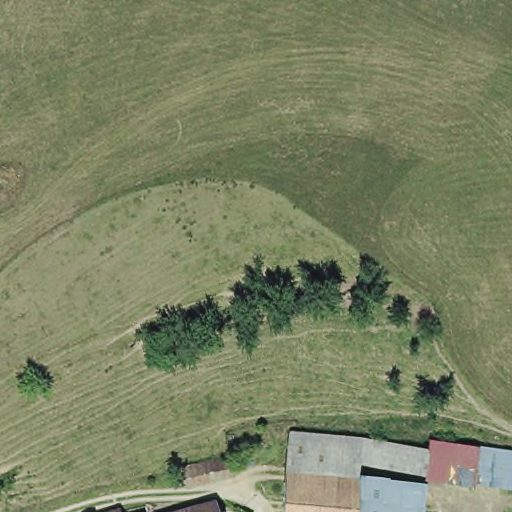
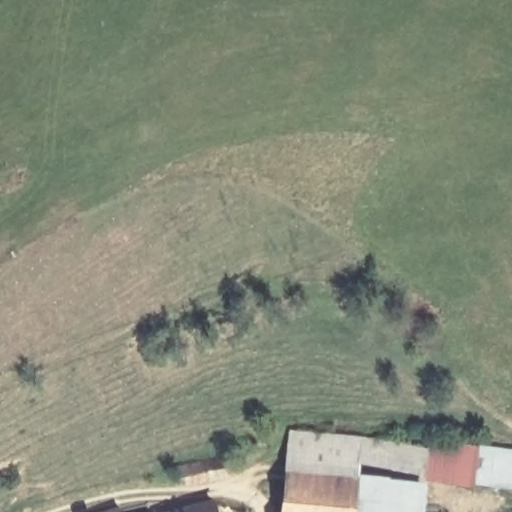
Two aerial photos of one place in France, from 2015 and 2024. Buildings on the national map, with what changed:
unchanged [(428,480),(360,466),(362,512),(285,512),(294,431),(346,435),(428,450),(476,453),(479,484),(428,480)]
unchanged [(476,453),(428,450),(426,450),(428,439),(512,449),(512,488),(479,484),(476,453)]
unchanged [(180,490),(176,471),(231,460),(234,480),(180,490)]
unchanged [(423,512),(362,512),(361,473),(427,483),(423,512)]
unchanged [(212,512),(190,512),(211,506),(212,512)]

